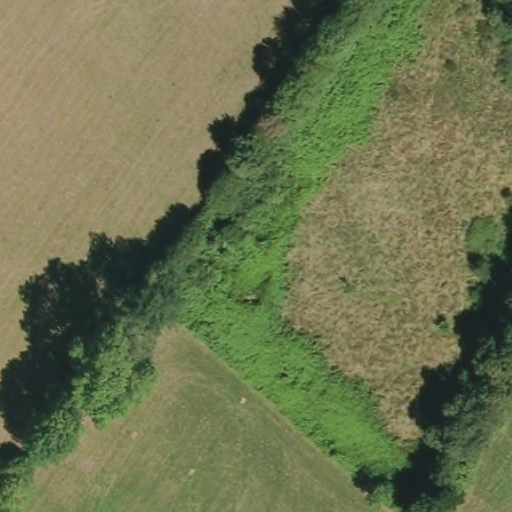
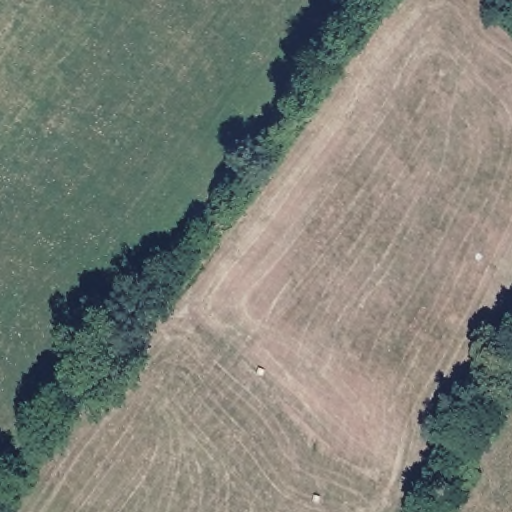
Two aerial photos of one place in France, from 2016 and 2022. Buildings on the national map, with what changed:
[]

